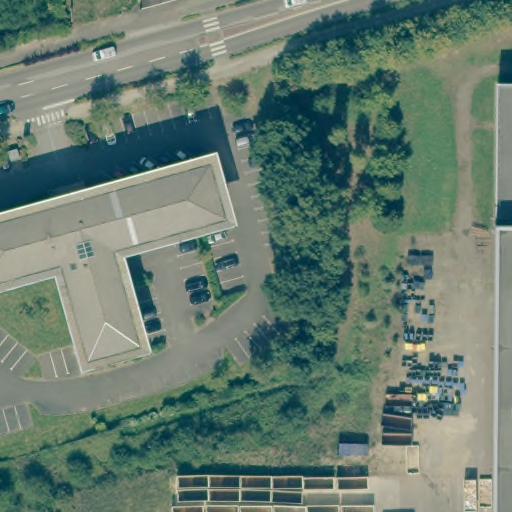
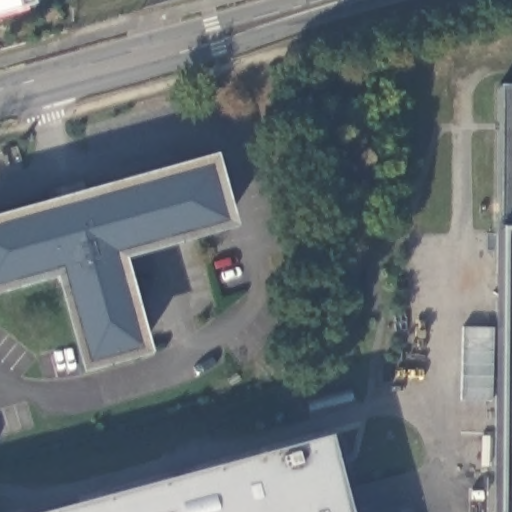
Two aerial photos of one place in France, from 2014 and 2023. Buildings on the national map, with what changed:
new [(0,13),(0,0),(31,0),(32,4),(0,13)]
unchanged [(496,80),(512,80),(512,512),(491,512),(496,80)]
unchanged [(65,267),(0,285),(0,222),(215,161),(231,219),(122,249),(124,260),(147,348),(92,362),(65,267)]
new [(344,512),(49,512),(324,438),(344,512)]

